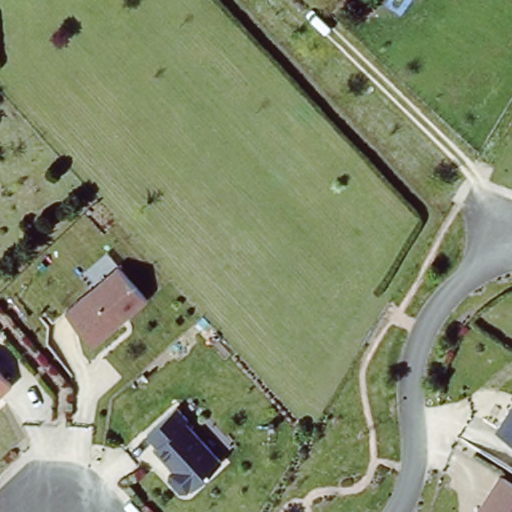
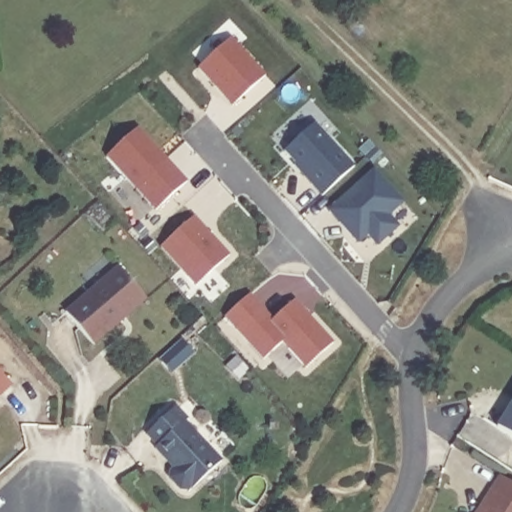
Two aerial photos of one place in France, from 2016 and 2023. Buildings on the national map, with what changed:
new [(198,68),(233,38),(267,74),(232,105),(198,68)]
new [(294,165),(296,163),(285,151),(315,122),(355,165),(323,195),(294,165)]
new [(156,209),(107,156),(139,129),(189,181),(156,209)]
new [(329,210),(375,168),(406,200),(390,215),(401,225),(378,245),(368,234),(358,244),(329,210)]
new [(196,285),(160,245),(195,215),(230,255),(196,285)]
unchanged [(119,265),(147,299),(94,344),(66,310),(119,265)]
new [(306,367),(284,341),(264,359),(226,314),(252,293),(274,318),(296,299),(334,341),(306,367)]
unchanged [(11,385),(0,396),(0,373),(11,385)]
unchanged [(512,402),(512,435),(497,426),(512,402)]
unchanged [(169,411),(181,424),(184,421),(222,459),(187,491),(180,491),(169,479),(169,472),(173,469),(154,449),(157,446),(147,434),(169,411)]
unchanged [(500,475),(512,483),(512,512),(476,512),(500,475)]

